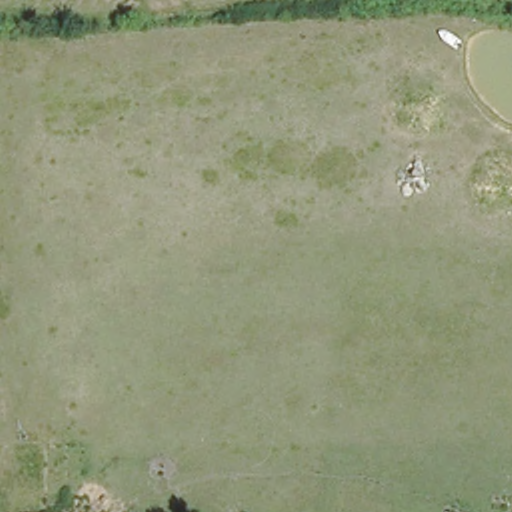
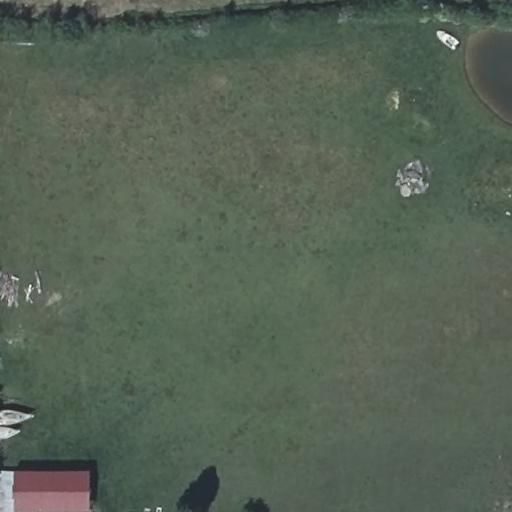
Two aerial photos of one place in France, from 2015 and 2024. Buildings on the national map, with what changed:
new [(90,511),(0,512),(0,471),(90,470),(90,511)]

